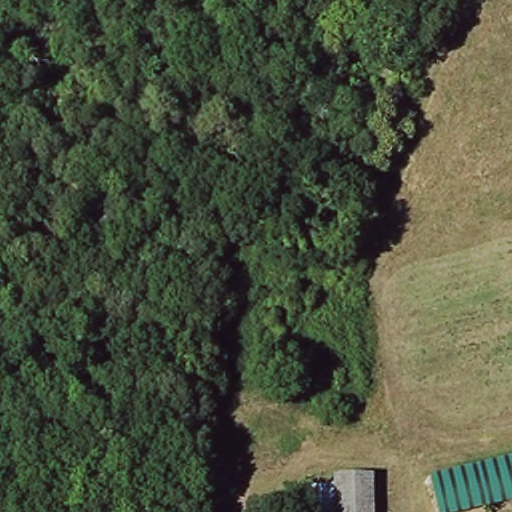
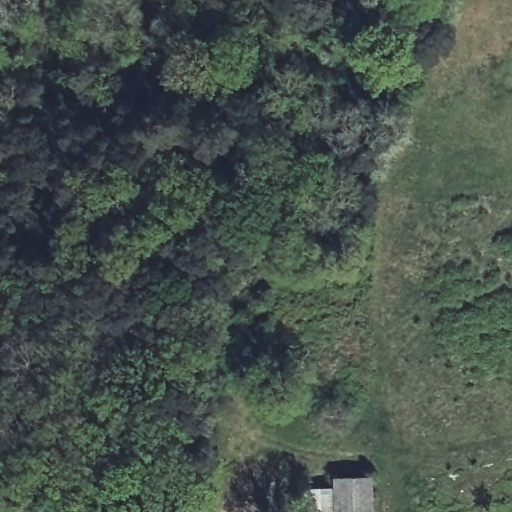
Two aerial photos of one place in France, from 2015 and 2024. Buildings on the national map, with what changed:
demolished [(484,512),(438,512),(430,479),(512,459),(512,505),(484,512)]
unchanged [(341,484),(374,484),(373,512),(341,512),(341,484)]

